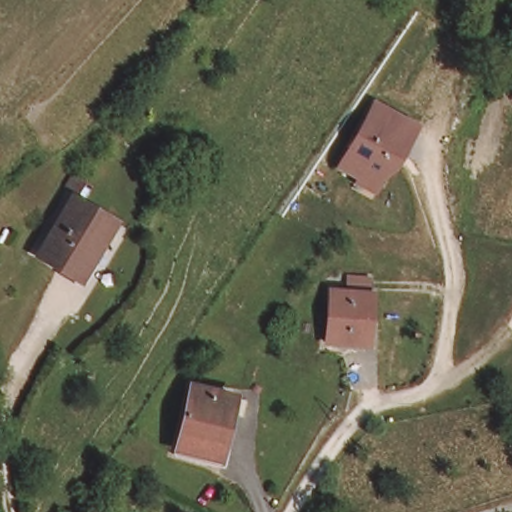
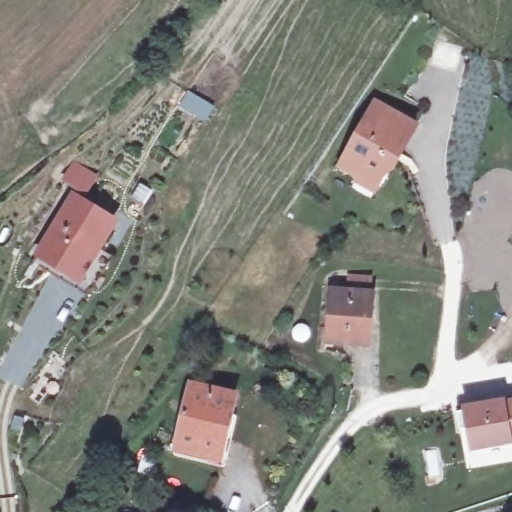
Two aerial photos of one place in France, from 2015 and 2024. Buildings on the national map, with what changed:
unchanged [(340,157),(375,94),(416,117),(400,145),(396,142),(379,174),(375,182),(357,172),(359,168),(340,157)]
unchanged [(40,253),(75,194),(113,217),(91,254),(95,257),(82,277),(40,253)]
unchanged [(367,317),(362,317),(360,351),(322,348),(326,296),(343,297),(344,283),(365,284),(363,298),(369,299),(367,317)]
unchanged [(174,447),(190,385),(233,395),(218,457),(174,447)]
new [(512,400),(512,446),(471,452),(465,428),(460,429),(458,413),(462,412),(462,406),(506,398),(506,401),(512,400)]

